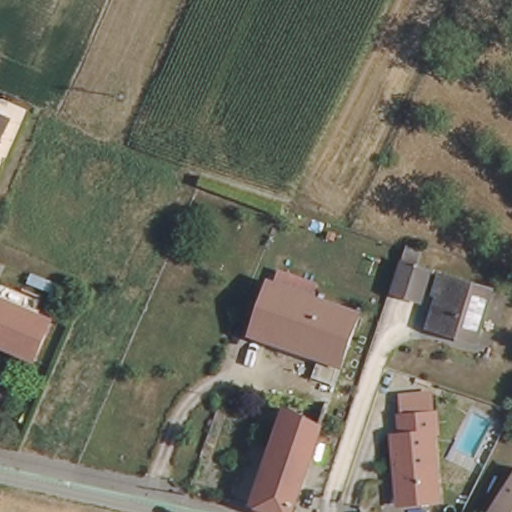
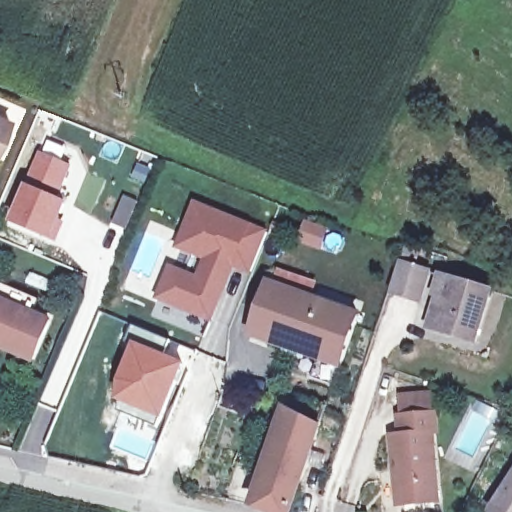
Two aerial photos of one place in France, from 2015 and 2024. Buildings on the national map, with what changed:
unchanged [(0,135),(0,114),(7,117),(0,135)]
new [(40,151),(72,164),(59,196),(26,182),(40,151)]
new [(26,182),(59,196),(69,200),(57,242),(9,222),(26,182)]
new [(123,193),(139,201),(126,230),(110,223),(123,193)]
new [(208,317),(155,296),(167,267),(195,277),(204,256),(175,245),(192,203),(265,232),(249,272),(229,263),(222,280),(208,317)]
unchanged [(402,263),(429,272),(419,302),(392,293),(402,263)]
unchanged [(364,307),(340,378),(316,370),(324,350),(254,325),(272,277),(364,307)]
unchanged [(450,335),(432,328),(441,297),(437,296),(442,277),(492,291),(479,335),(476,342),(450,335)]
unchanged [(34,362),(1,350),(2,346),(0,345),(0,302),(50,323),(34,362)]
new [(119,381),(134,341),(186,363),(160,420),(117,403),(119,381)]
unchanged [(394,475),(389,440),(400,438),(399,421),(397,396),(432,408),(434,417),(437,436),(430,437),(440,505),(405,507),(398,508),(394,475)]
unchanged [(320,427),(287,512),(272,512),(256,507),(289,409),(302,414),(320,427)]
unchanged [(512,480),(512,512),(491,512),(495,506),(512,480)]

